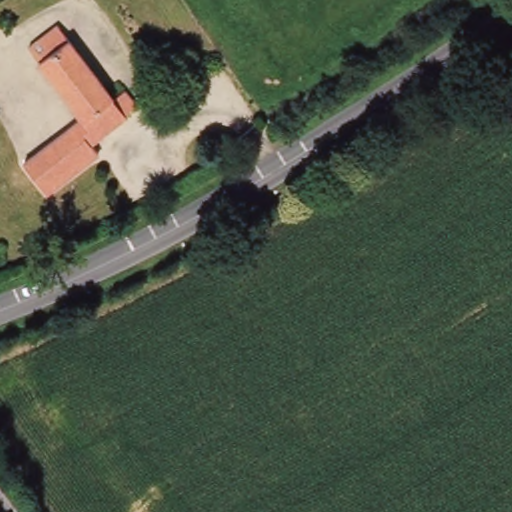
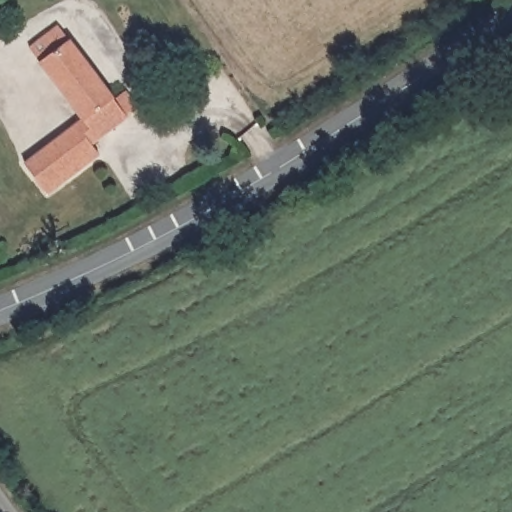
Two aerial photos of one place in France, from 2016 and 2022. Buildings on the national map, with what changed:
unchanged [(135,100),(124,108),(127,114),(91,142),(100,153),(51,190),(26,161),(85,115),(32,48),(60,27),(114,95),(126,87),(135,100)]

